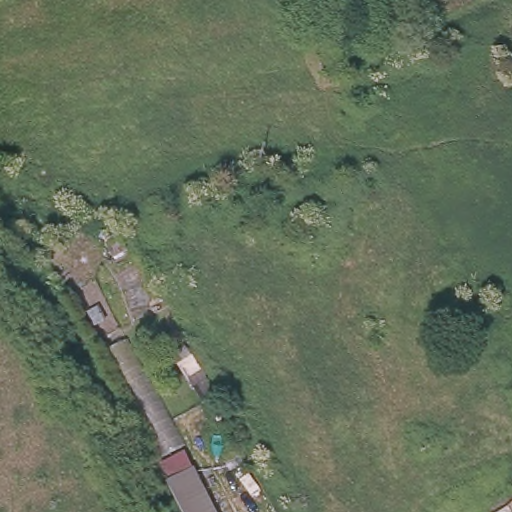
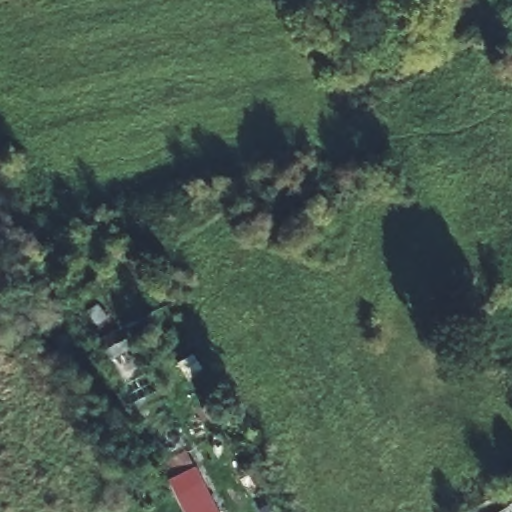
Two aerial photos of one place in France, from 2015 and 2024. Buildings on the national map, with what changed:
unchanged [(188,468),(213,512),(180,512),(163,481),(188,468)]
unchanged [(512,512),(500,512),(512,505),(512,512)]

